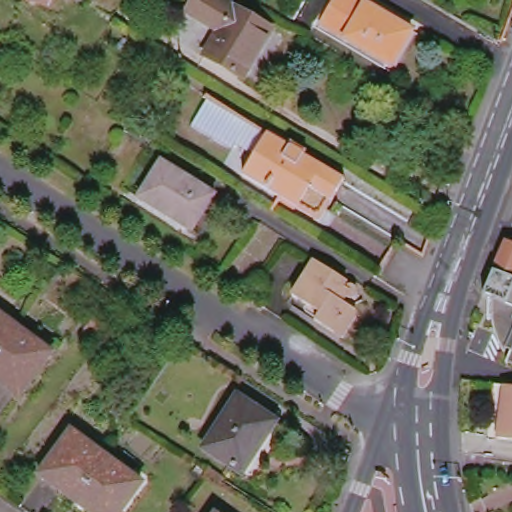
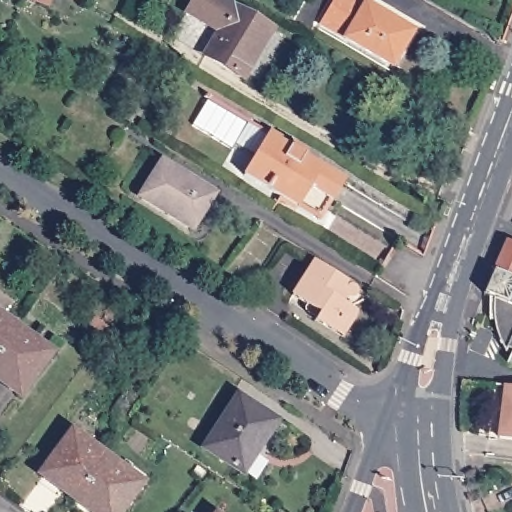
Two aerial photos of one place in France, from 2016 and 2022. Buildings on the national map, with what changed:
unchanged [(30,0),(49,0),(47,7),(30,0)]
unchanged [(206,55),(220,31),(188,12),(195,0),(223,0),(273,30),(245,79),(206,55)]
unchanged [(322,24),(336,0),(362,0),(415,30),(394,65),(322,24)]
unchanged [(270,132),(253,159),(195,127),(210,100),(270,132)]
unchanged [(312,217),(243,175),(253,159),(270,132),(272,130),(308,152),(306,156),(346,180),(332,203),(320,222),(312,217)]
unchanged [(193,230),(140,196),(162,161),(215,194),(193,230)]
unchanged [(497,302),(480,295),(502,241),(512,246),(512,367),(502,363),(507,352),(503,350),(501,355),(498,351),(496,347),(494,343),(492,339),(491,335),(490,330),(489,325),(489,321),(488,316),(491,317),(497,302)]
unchanged [(343,285),(345,286),(348,285),(352,284),(356,286),(358,290),(357,295),(353,298),(350,298),(347,297),(344,302),(354,308),(355,312),(355,316),(352,320),(350,320),(345,319),(336,332),(316,320),(321,312),(293,295),(315,260),(347,280),(343,285)]
unchanged [(17,326),(0,348),(0,314),(17,326)]
unchanged [(21,395),(0,381),(0,348),(17,326),(52,352),(21,395)]
unchanged [(512,438),(499,437),(505,386),(512,387),(512,438)]
unchanged [(243,474),(203,447),(237,395),(277,421),(243,474)]
unchanged [(40,474),(72,430),(107,456),(75,500),(40,474)]
unchanged [(121,512),(91,512),(75,500),(107,456),(143,483),(121,512)]

